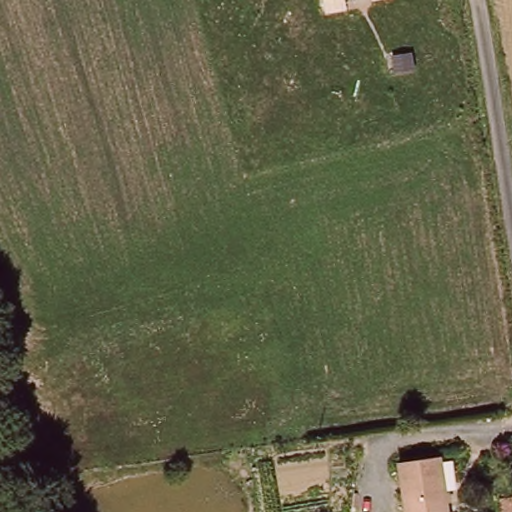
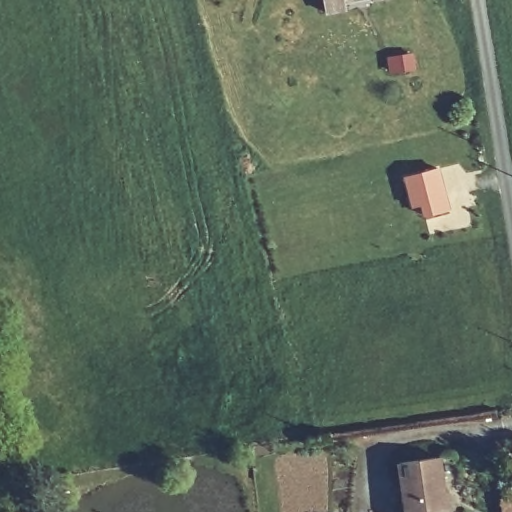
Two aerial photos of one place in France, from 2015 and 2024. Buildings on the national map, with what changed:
unchanged [(327,15),(324,0),(346,0),(347,11),(327,15)]
unchanged [(374,2),(373,0),(380,0),(374,2)]
new [(453,209),(424,218),(420,206),(411,209),(403,177),(439,166),(453,209)]
demolished [(440,457),(457,454),(460,487),(444,490),(440,457)]
unchanged [(439,460),(446,512),(402,512),(396,466),(439,460)]
unchanged [(512,495),(512,512),(502,512),(501,497),(512,495)]

